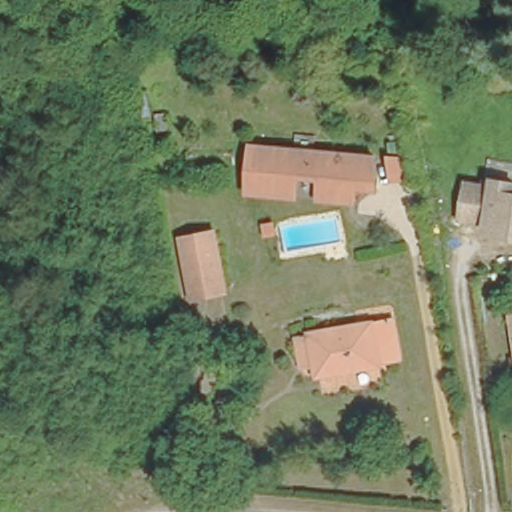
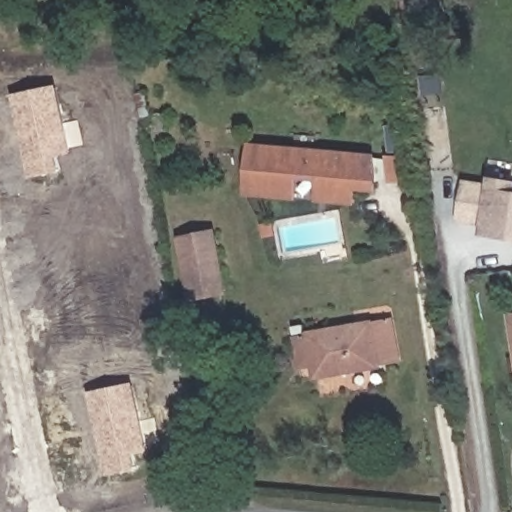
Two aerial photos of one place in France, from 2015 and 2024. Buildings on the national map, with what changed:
new [(60,84),(75,154),(60,157),(62,171),(32,178),(12,95),(60,84)]
unchanged [(378,191),(362,188),(358,206),(317,202),(321,182),(304,181),(300,200),(244,196),(250,141),(380,152),(378,191)]
unchanged [(488,175),(512,177),(512,241),(480,238),(480,228),(455,224),(463,177),(488,180),(488,175)]
unchanged [(216,237),(225,287),(225,291),(194,296),(185,242),(216,237)]
unchanged [(397,340),(401,357),(319,374),(317,363),(303,365),(297,332),(392,315),(397,340)]
unchanged [(512,316),(512,320),(511,317),(512,316)]
new [(135,382),(150,452),(135,455),(138,468),(108,475),(90,392),(135,382)]

